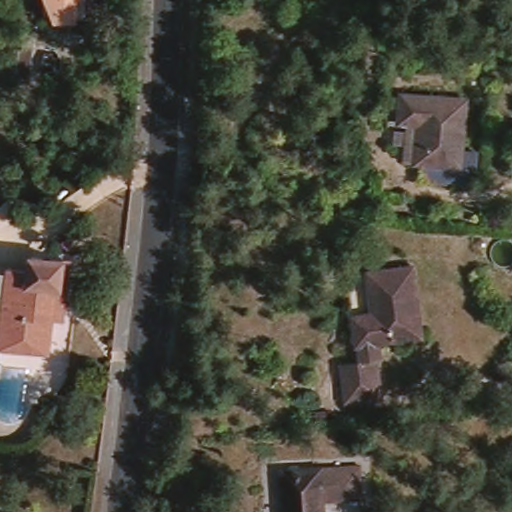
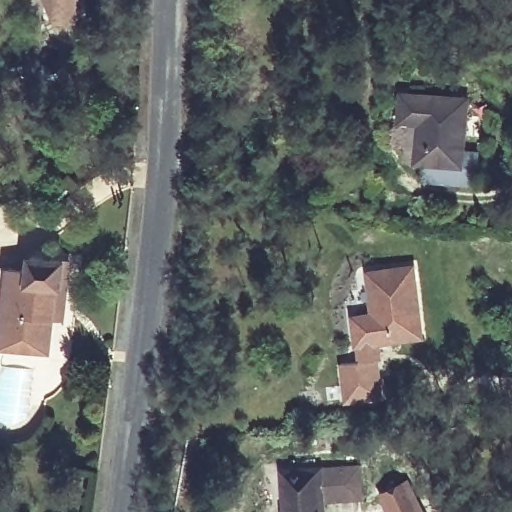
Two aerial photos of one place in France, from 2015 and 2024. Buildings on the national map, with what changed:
unchanged [(55,30),(55,0),(76,0),(75,30),(55,30)]
unchanged [(462,151),(473,152),(470,189),(402,183),(407,126),(395,124),(398,94),(465,100),(462,151)]
unchanged [(0,344),(10,265),(29,268),(32,255),(66,259),(73,260),(65,317),(55,316),(49,351),(0,344)]
unchanged [(10,265),(0,344),(0,265),(10,265)]
unchanged [(421,342),(380,346),(382,367),(377,368),(380,402),(346,404),(343,369),(358,367),(354,319),(370,316),(367,274),(412,269),(421,342)]
unchanged [(324,512),(285,512),(282,474),(340,470),(358,469),(361,504),(341,505),(323,506),(324,512)]
new [(408,485),(421,512),(388,512),(382,497),(408,485)]

